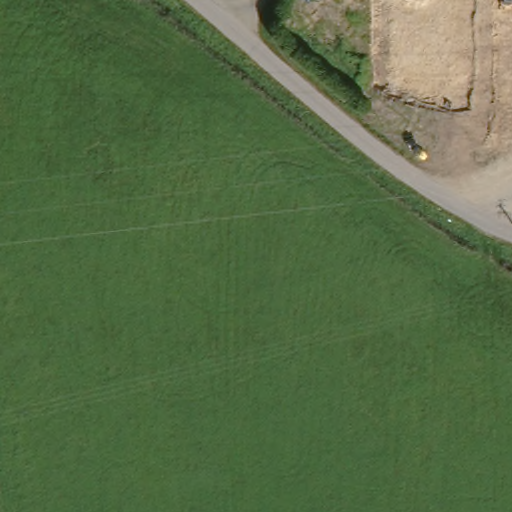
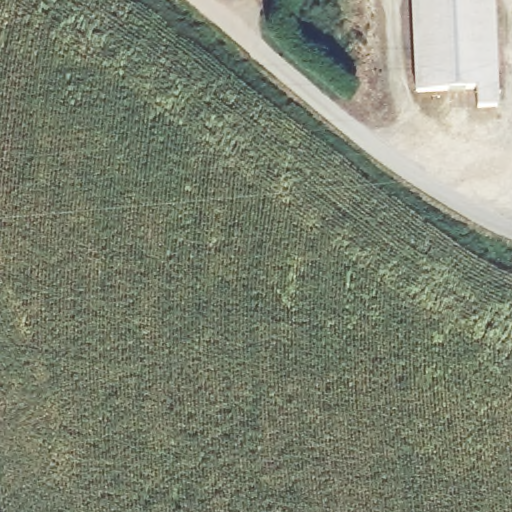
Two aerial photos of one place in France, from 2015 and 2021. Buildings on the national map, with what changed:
new [(412,0),(494,0),(499,107),(478,107),(477,87),(415,89),(412,0)]

